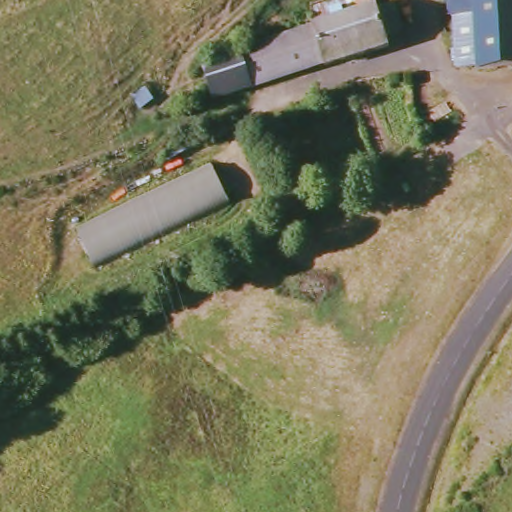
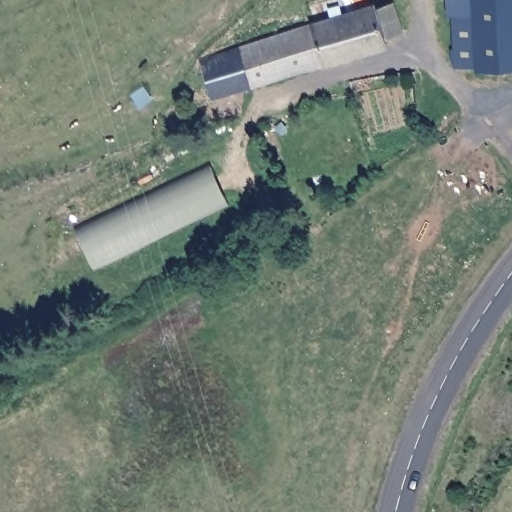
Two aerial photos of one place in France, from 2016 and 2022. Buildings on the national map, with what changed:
unchanged [(386,42),(387,48),(329,60),(320,18),(317,6),(347,0),(373,0),(376,12),(394,8),(400,40),(386,42)]
unchanged [(452,7),(452,0),(475,0),(475,5),(456,7),(452,7)]
unchanged [(459,64),(456,7),(475,5),(475,0),(512,0),(512,61),(459,64)]
unchanged [(216,98),(206,59),(320,18),(329,60),(306,63),(253,94),(216,98)]
unchanged [(216,159),(237,199),(88,277),(66,237),(216,159)]

